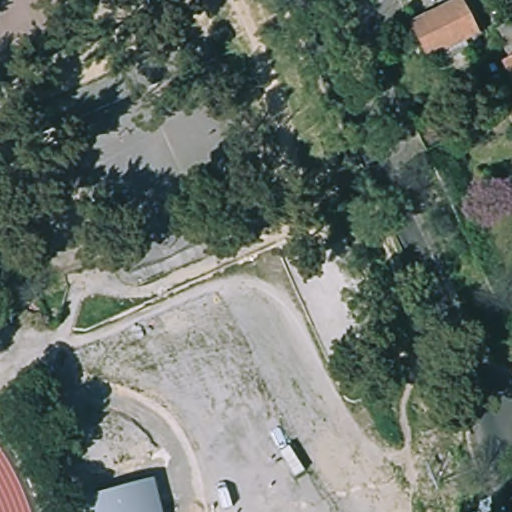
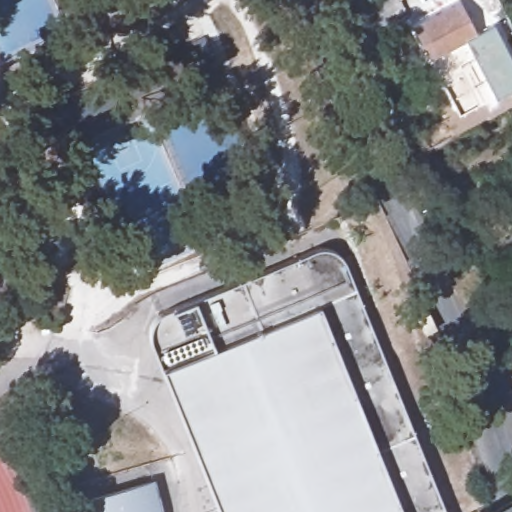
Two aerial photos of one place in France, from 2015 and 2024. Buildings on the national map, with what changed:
unchanged [(430,59),(412,24),(461,0),(462,0),(478,34),(430,59)]
unchanged [(206,35),(215,57),(29,140),(20,119),(206,35)]
unchanged [(512,55),(512,80),(501,61),(512,55)]
unchanged [(427,151),(420,136),(416,130),(446,114),(457,136),(427,151)]
new [(156,357),(150,343),(149,334),(151,326),(157,318),(165,312),(316,252),(324,251),(335,253),(342,258),(347,268),(446,512),(220,512),(161,368),(156,357)]
new [(411,314),(422,308),(431,328),(420,333),(411,314)]
unchanged [(162,512),(88,512),(85,500),(153,483),(161,511),(162,512)]

